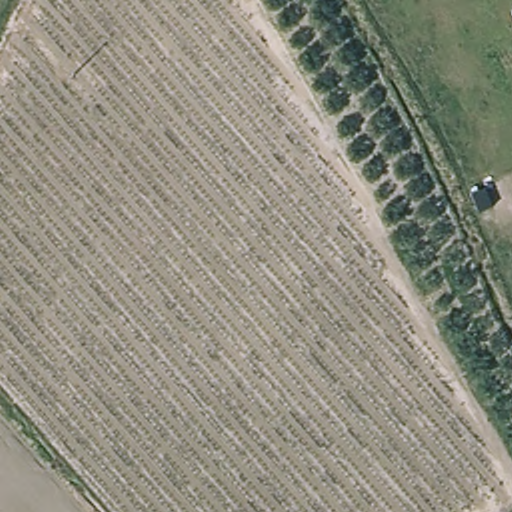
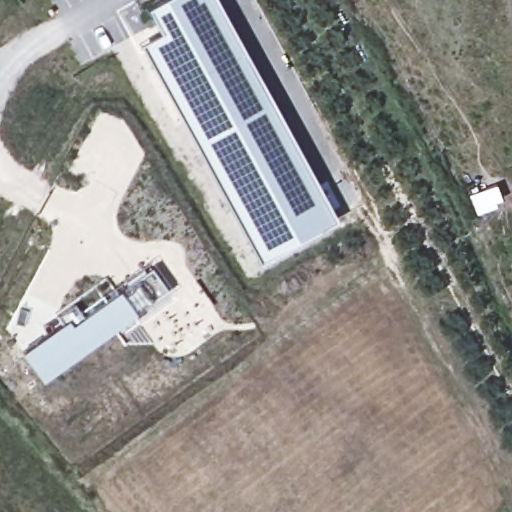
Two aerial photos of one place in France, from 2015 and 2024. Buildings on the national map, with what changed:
new [(145,9),(162,0),(214,0),(335,223),(258,265),(138,46),(158,34),(145,9)]

